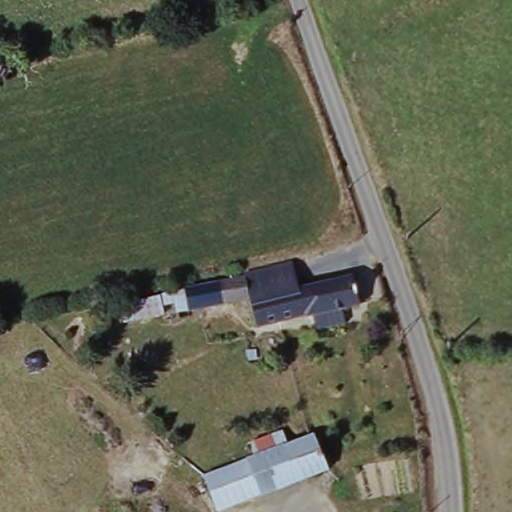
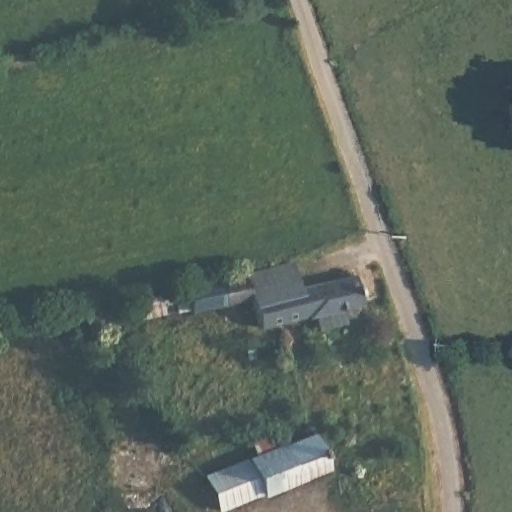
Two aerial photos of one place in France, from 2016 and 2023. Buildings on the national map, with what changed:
unchanged [(290,260),(298,289),(307,318),(257,327),(247,297),(243,297),(238,274),(290,260)]
unchanged [(318,331),(314,316),(307,318),(298,289),(349,271),(359,299),(343,307),(345,324),(318,331)]
unchanged [(186,309),(180,285),(238,274),(243,297),(188,309),(186,309)]
unchanged [(164,312),(122,319),(118,301),(160,294),(164,312)]
unchanged [(203,473),(310,434),(324,471),(216,511),(203,473)]

